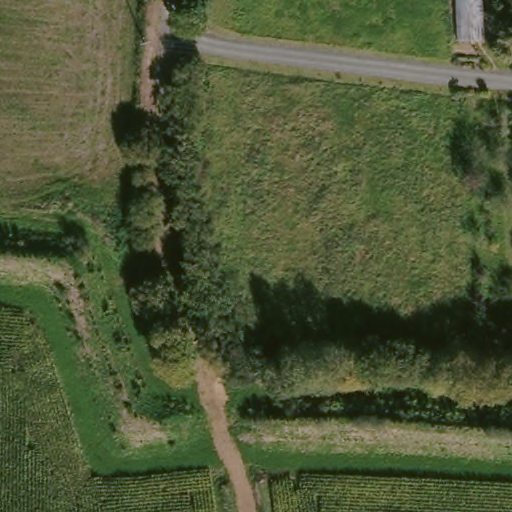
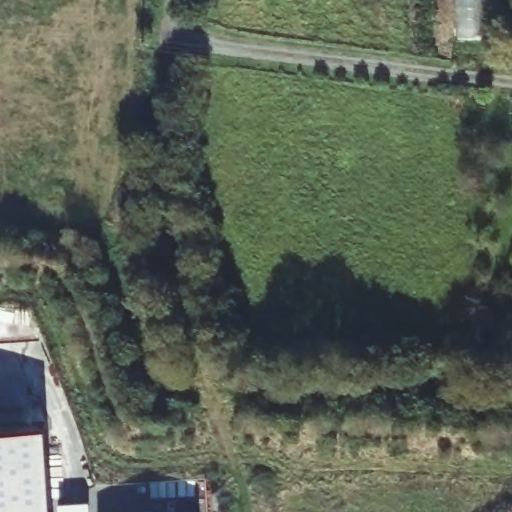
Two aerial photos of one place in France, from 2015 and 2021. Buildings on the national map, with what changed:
unchanged [(456,41),(456,0),(484,0),(486,41),(456,41)]
new [(49,512),(0,512),(0,435),(44,432),(49,512)]

